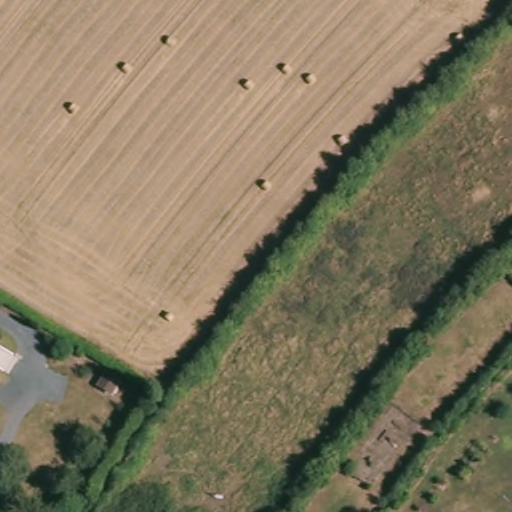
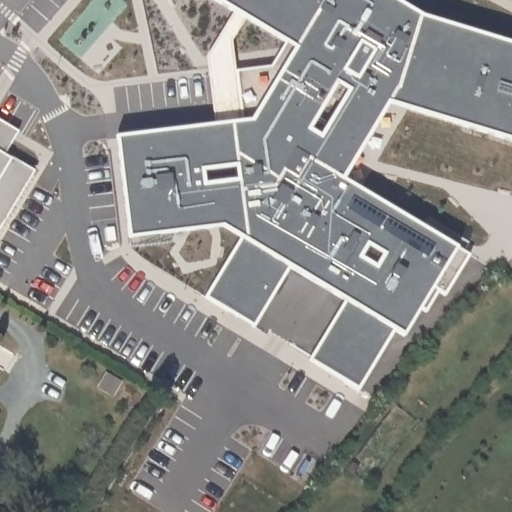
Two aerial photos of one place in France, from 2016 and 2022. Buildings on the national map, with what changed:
new [(216,123),(252,119),(284,67),(295,48),(245,18),(234,12),(214,0),(396,0),(421,15),(512,43),(512,141),(387,102),(343,177),(457,246),(469,254),(445,294),(438,290),(426,311),(421,307),(403,336),(395,330),(358,389),(311,358),(345,301),(289,267),(254,324),(207,296),(242,238),(222,227),(129,238),(117,135),(216,123)]
new [(208,54),(234,12),(245,18),(232,39),(237,70),(284,67),(252,119),(216,123),(208,54)]
new [(18,129),(49,147),(0,231),(0,118),(18,129)]

